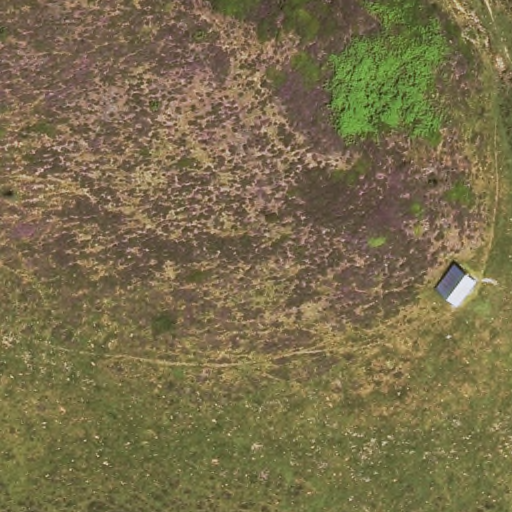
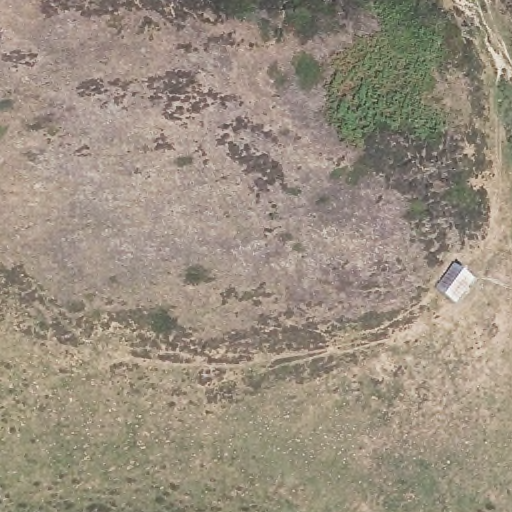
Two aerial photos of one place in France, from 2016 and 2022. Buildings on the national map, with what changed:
unchanged [(454,265),(477,283),(468,295),(457,308),(434,291),(454,265)]

